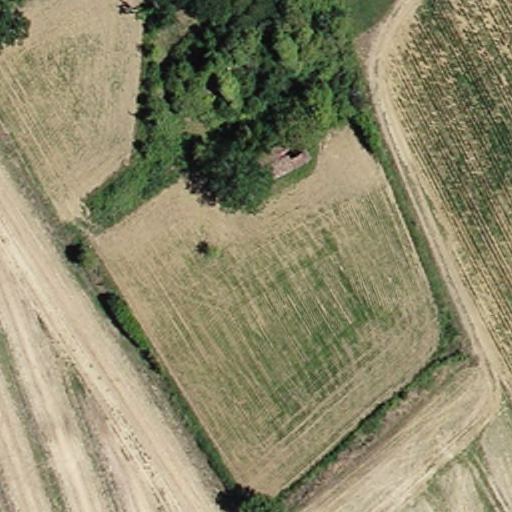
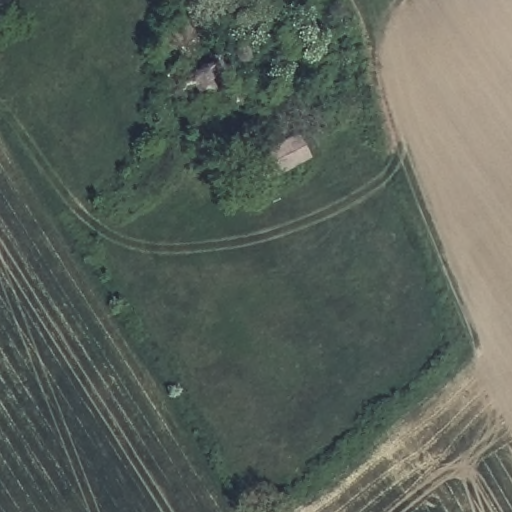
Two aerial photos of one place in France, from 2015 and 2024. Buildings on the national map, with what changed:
unchanged [(311,158),(277,178),(265,158),(302,139),(311,158)]

